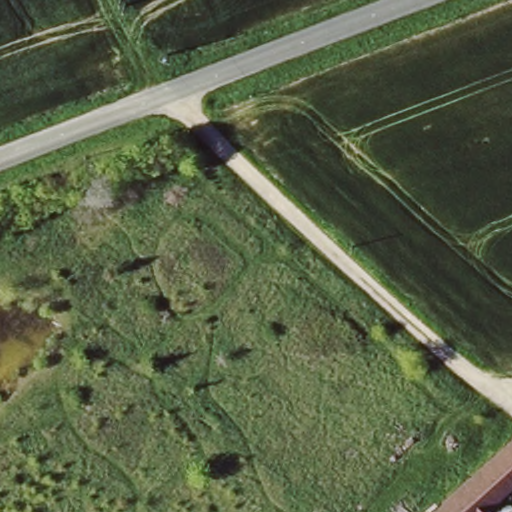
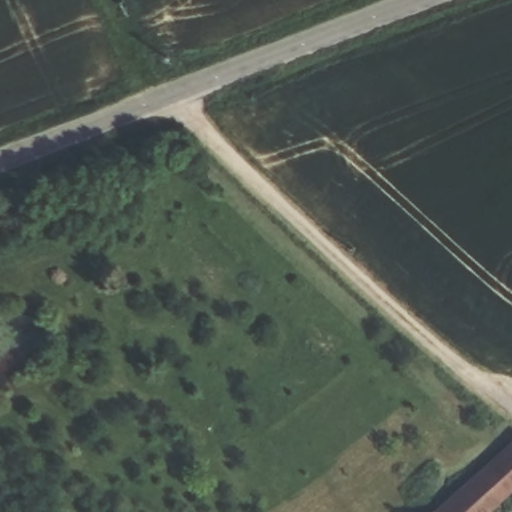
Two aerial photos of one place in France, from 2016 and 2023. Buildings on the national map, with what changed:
unchanged [(161,42),(172,39),(179,55),(168,59),(161,42)]
unchanged [(493,512),(440,512),(443,509),(512,446),(512,495),(493,512)]

